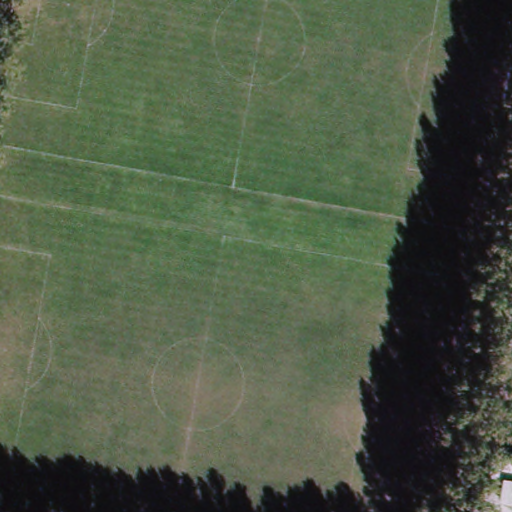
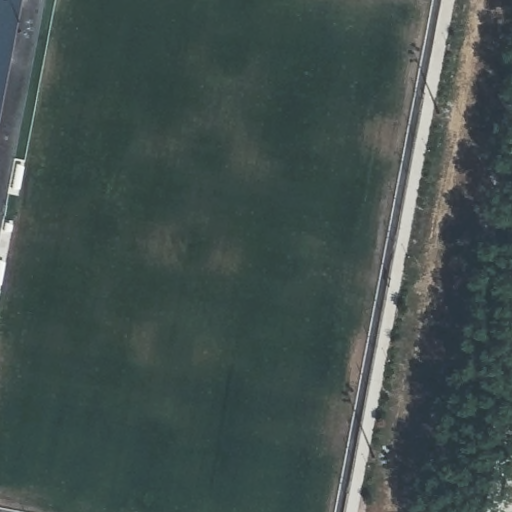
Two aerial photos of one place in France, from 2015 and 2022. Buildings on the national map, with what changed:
new [(0,107),(0,0),(21,0),(0,107)]
unchanged [(512,457),(512,512),(487,512),(498,454),(512,457)]

